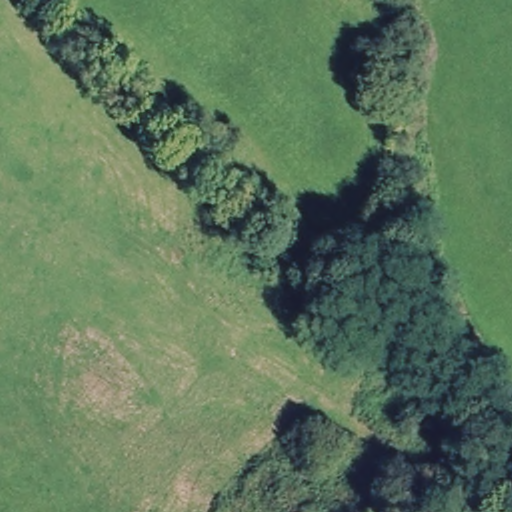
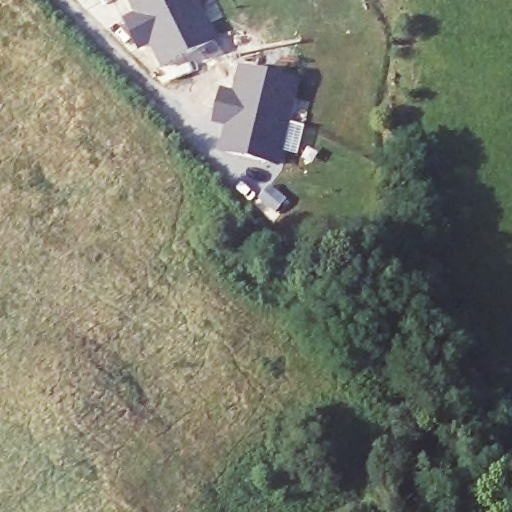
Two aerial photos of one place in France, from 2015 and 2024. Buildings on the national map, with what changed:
new [(135,6),(132,0),(186,0),(171,7),(150,16),(137,22),(130,25),(123,12),(135,6)]
new [(137,22),(150,16),(171,7),(186,0),(195,0),(210,34),(159,57),(147,34),(135,39),(130,25),(137,22)]
new [(279,125),(221,108),(211,105),(215,91),(228,95),(235,69),(290,85),(279,125)]
new [(221,108),(279,125),(268,164),(213,149),(220,123),(207,120),(211,105),(221,108)]

